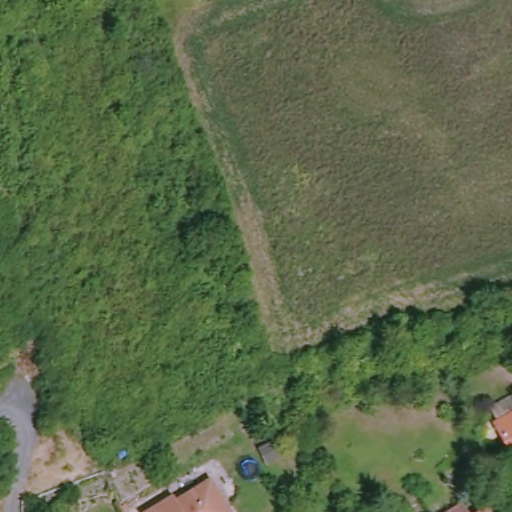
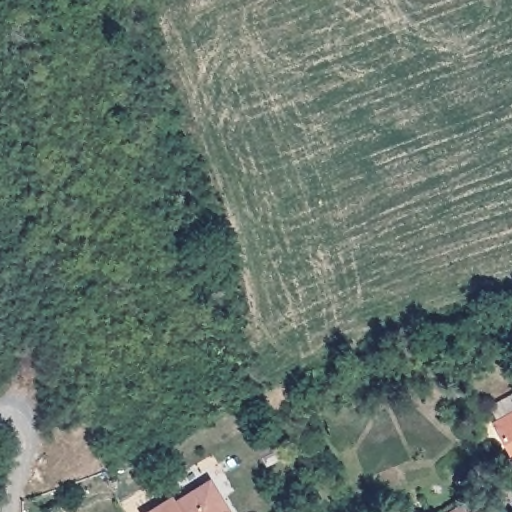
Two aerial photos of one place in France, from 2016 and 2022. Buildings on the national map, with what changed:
unchanged [(512,467),(488,419),(512,408),(512,467)]
unchanged [(174,499),(207,478),(227,509),(229,512),(142,512),(171,494),(174,499)]
unchanged [(464,512),(451,512),(461,506),(464,512)]
unchanged [(488,512),(480,512),(486,508),(488,512)]

